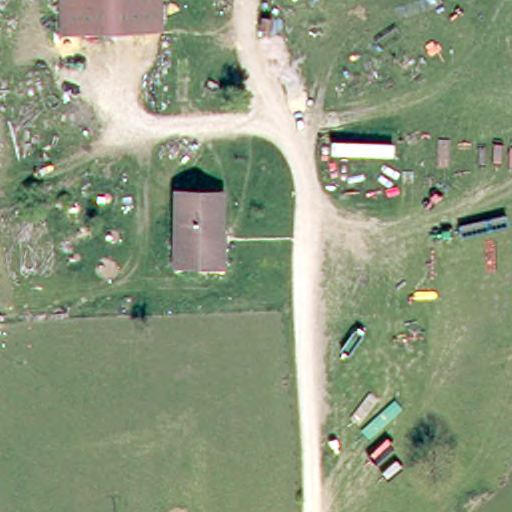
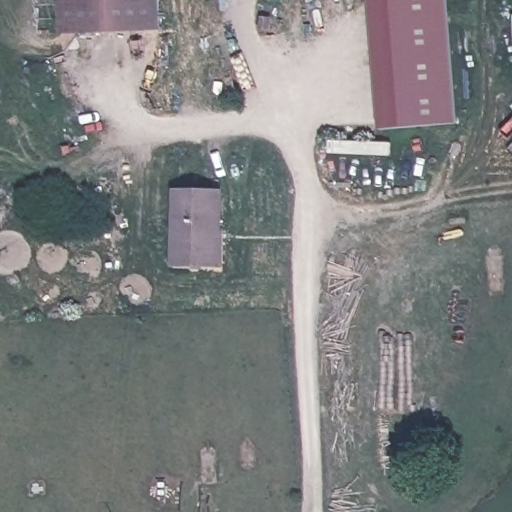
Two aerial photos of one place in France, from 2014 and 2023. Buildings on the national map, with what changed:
unchanged [(59,0),(160,0),(160,7),(60,10),(59,0)]
new [(459,122),(381,130),(369,0),(448,0),(459,122)]
unchanged [(160,25),(60,25),(60,10),(160,7),(160,25)]
unchanged [(225,262),(202,261),(171,260),(175,186),(223,188),(222,228),(227,228),(225,262)]

